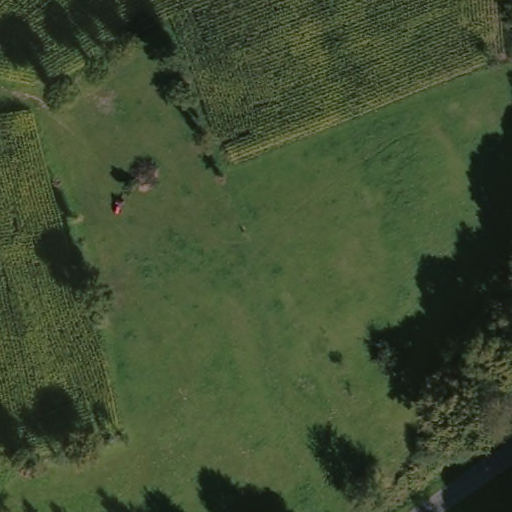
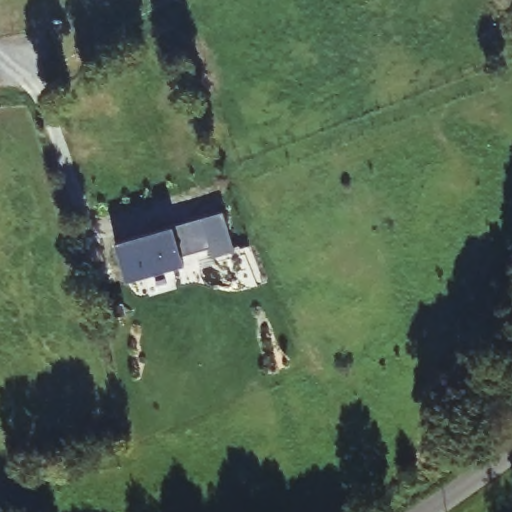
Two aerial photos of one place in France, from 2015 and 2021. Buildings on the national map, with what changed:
new [(212,257),(209,247),(180,254),(183,264),(125,280),(115,243),(173,227),(223,213),(233,250),(212,257)]

